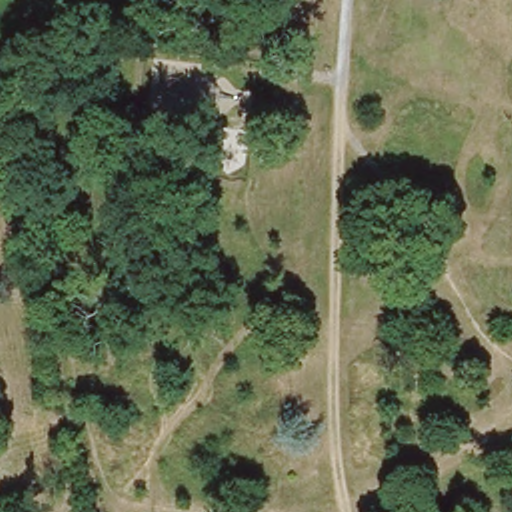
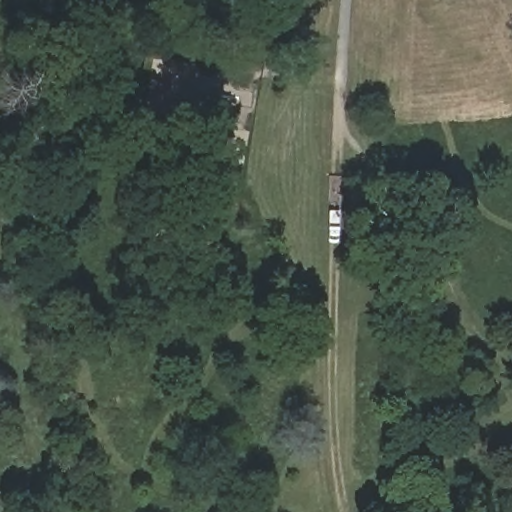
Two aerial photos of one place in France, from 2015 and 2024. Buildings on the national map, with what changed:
unchanged [(45,386),(34,404),(16,392),(29,376),(45,386)]

